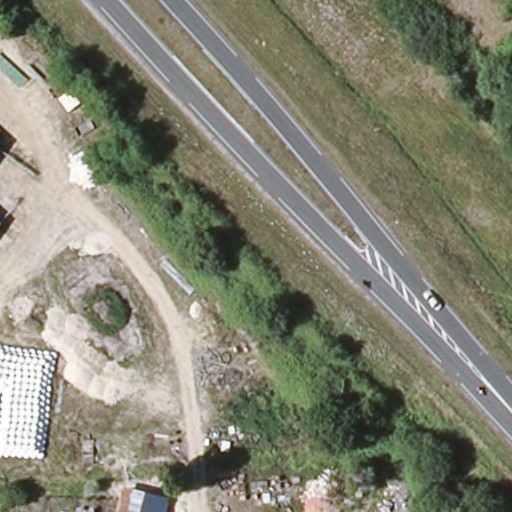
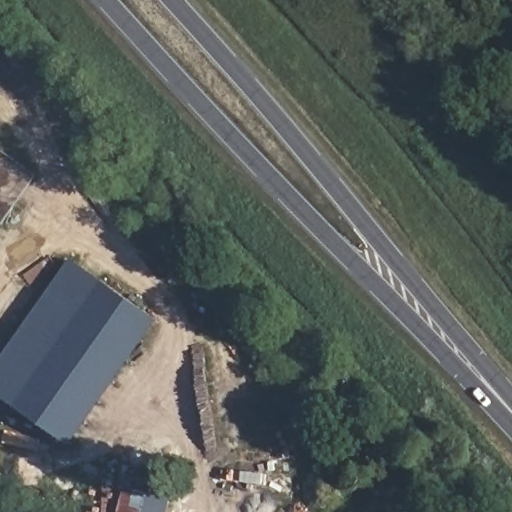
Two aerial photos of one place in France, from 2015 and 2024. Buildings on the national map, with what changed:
unchanged [(0,155),(0,149),(3,150),(0,155)]
unchanged [(0,235),(0,222),(6,226),(0,235)]
new [(0,394),(0,363),(71,260),(159,319),(71,446),(0,394)]
unchanged [(126,488),(172,499),(168,512),(119,512),(126,488)]

